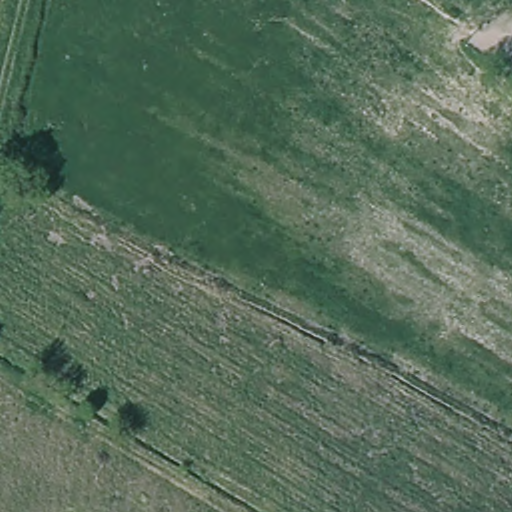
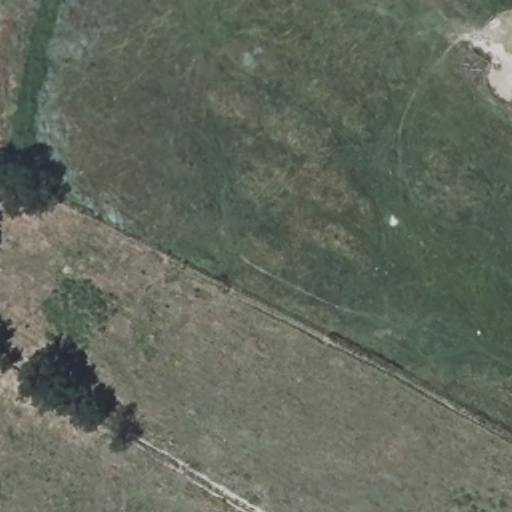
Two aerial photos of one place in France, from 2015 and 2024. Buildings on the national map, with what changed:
[]

